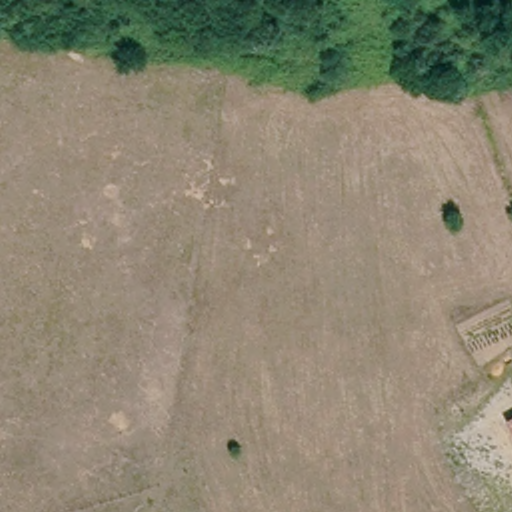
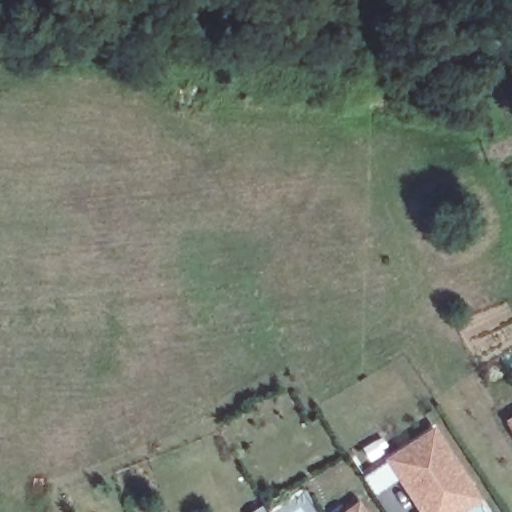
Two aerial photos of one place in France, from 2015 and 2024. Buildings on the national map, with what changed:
unchanged [(512,414),(512,431),(504,418),(512,414)]
new [(481,497),(460,512),(418,512),(384,460),(433,426),(481,497)]
new [(358,500),(367,512),(342,512),(358,500)]

